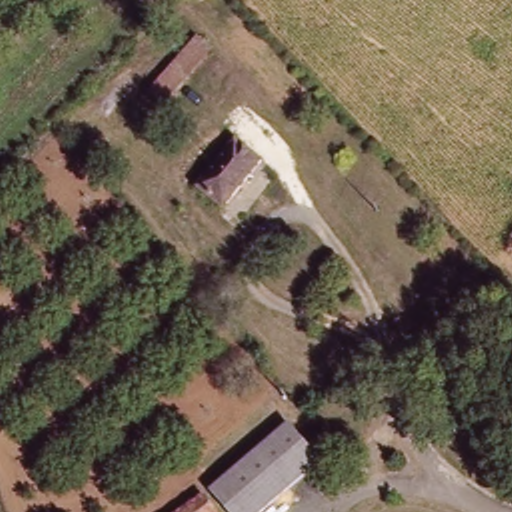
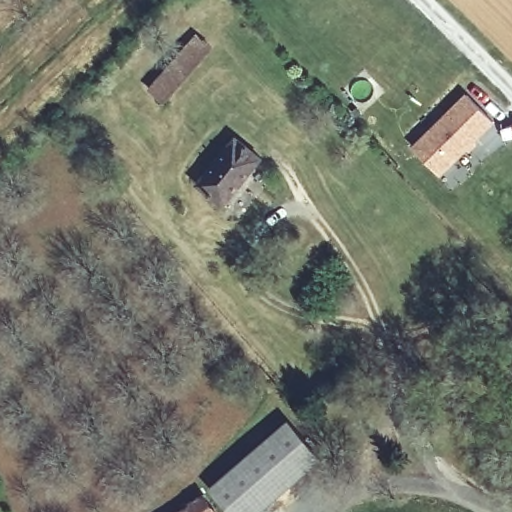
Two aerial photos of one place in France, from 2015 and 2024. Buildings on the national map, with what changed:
unchanged [(147,82),(196,32),(212,48),(167,104),(147,82)]
new [(495,122),(442,175),(414,145),(467,93),(495,122)]
unchanged [(234,137),(262,155),(229,206),(201,188),(234,137)]
unchanged [(226,512),(211,493),(294,424),(325,463),(267,512),(226,512)]
unchanged [(216,512),(176,512),(203,493),(216,512)]

